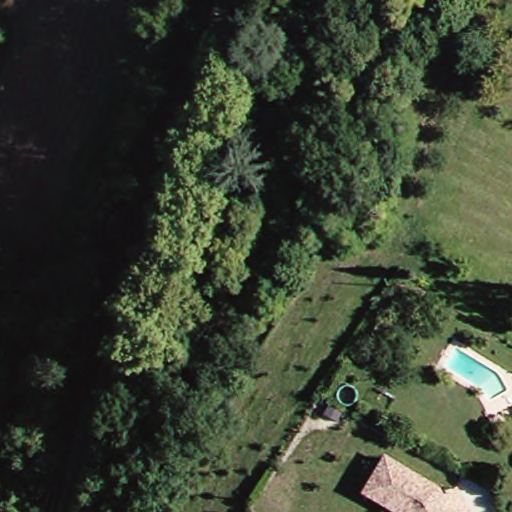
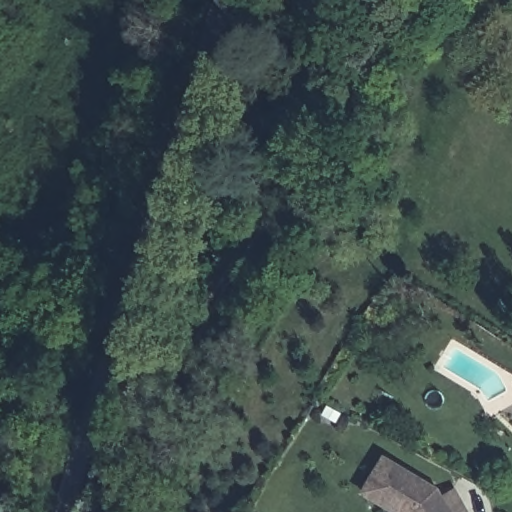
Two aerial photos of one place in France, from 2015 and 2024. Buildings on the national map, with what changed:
unchanged [(435,489),(449,512),(395,512),(362,493),(383,458),(435,489)]

